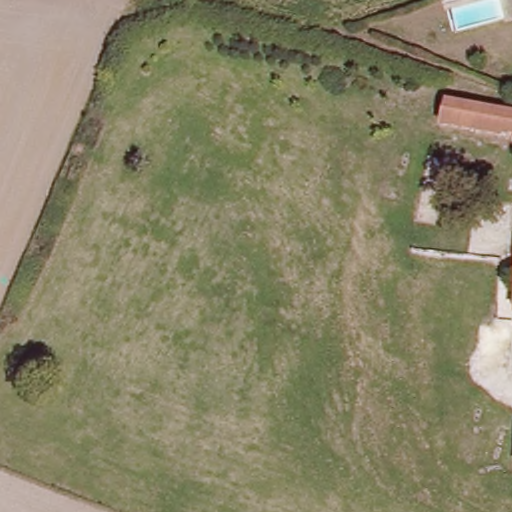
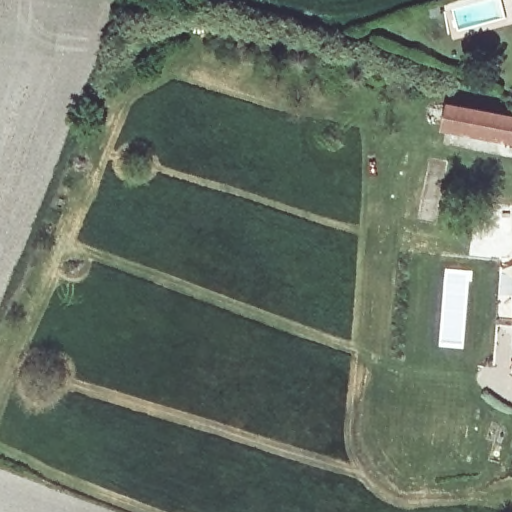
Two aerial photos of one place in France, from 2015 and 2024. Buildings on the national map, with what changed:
unchanged [(512,120),(512,141),(437,137),(440,118),(512,120)]
new [(470,272),(464,347),(443,344),(447,271),(470,272)]

